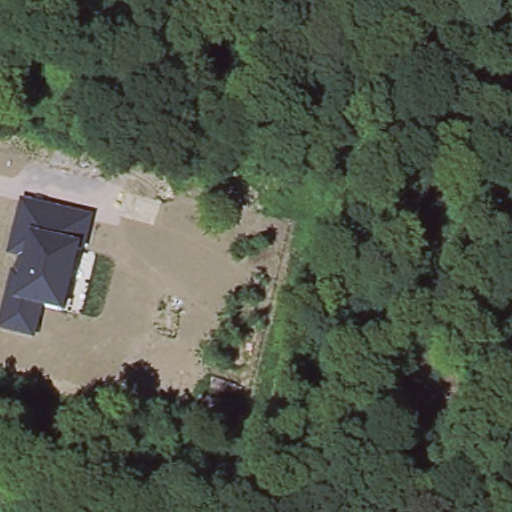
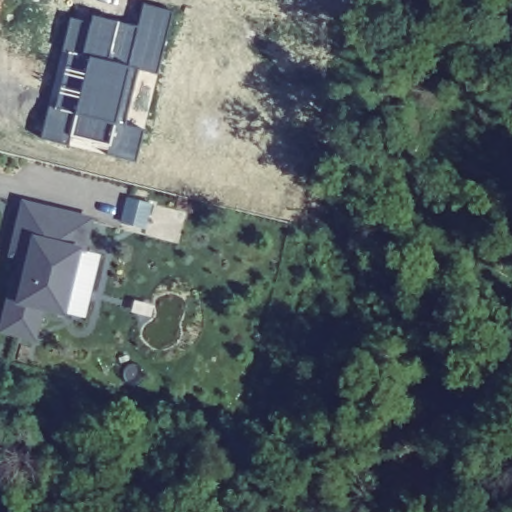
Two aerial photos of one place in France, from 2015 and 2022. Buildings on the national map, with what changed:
new [(35,136),(43,104),(50,105),(63,50),(56,48),(65,15),(86,20),(88,12),(133,24),(138,1),(169,8),(153,72),(125,65),(111,119),(140,126),(132,159),(102,152),(64,143),(35,136)]
new [(125,65),(153,72),(140,126),(111,119),(125,65)]
unchanged [(11,273),(15,274),(20,258),(7,256),(21,199),(92,214),(84,251),(80,250),(65,312),(43,307),(35,341),(0,331),(0,322),(11,273)]

